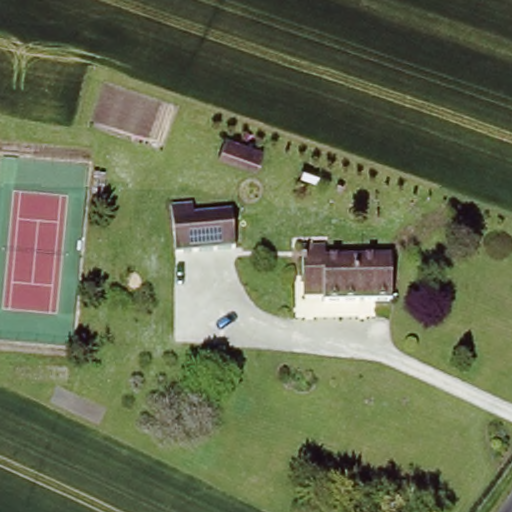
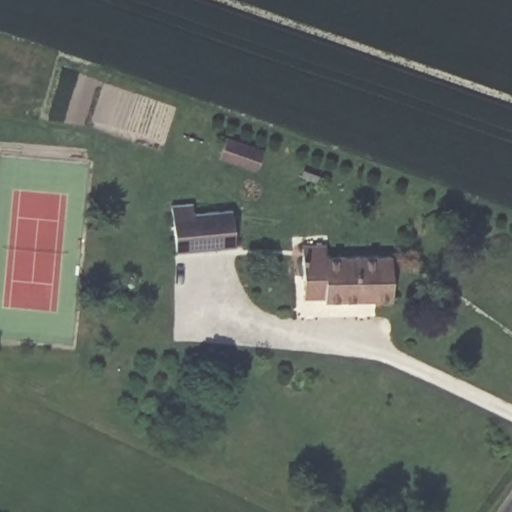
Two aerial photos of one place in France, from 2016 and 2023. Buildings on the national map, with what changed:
unchanged [(175,209),(196,207),(197,217),(235,214),(237,250),(179,255),(175,209)]
unchanged [(303,281),(302,246),(327,245),(327,258),(392,256),(393,302),(329,303),(328,298),(303,298),(303,281)]

